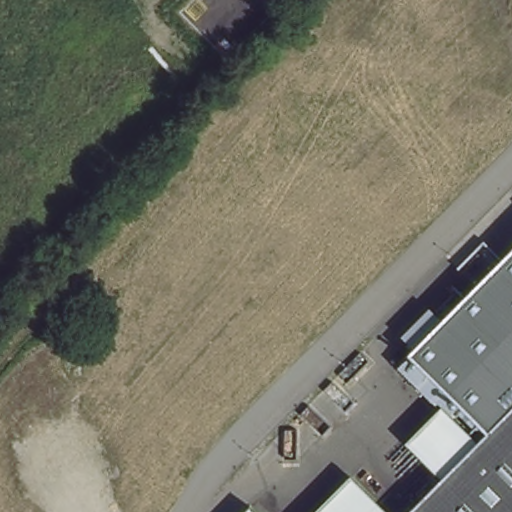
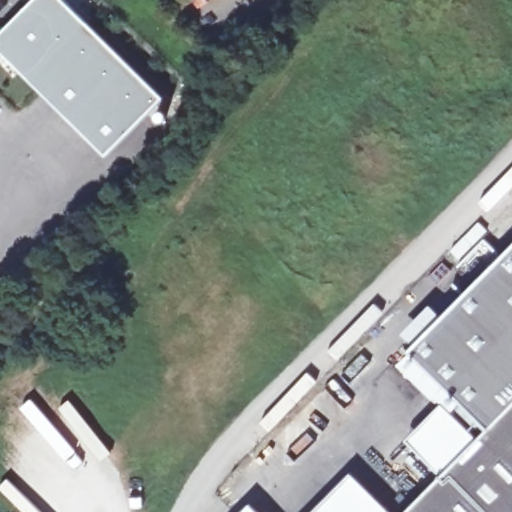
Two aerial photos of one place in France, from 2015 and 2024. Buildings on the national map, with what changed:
new [(5,59),(0,59),(0,29),(5,28),(32,0),(60,0),(162,98),(105,157),(5,59)]
unchanged [(395,511),(439,468),(400,434),(450,390),(406,345),(512,238),(512,512),(302,512),(347,469),(395,511)]
unchanged [(260,512),(236,512),(249,499),(260,512)]

